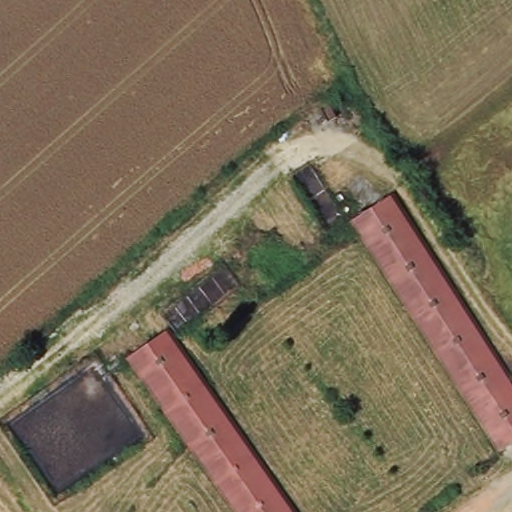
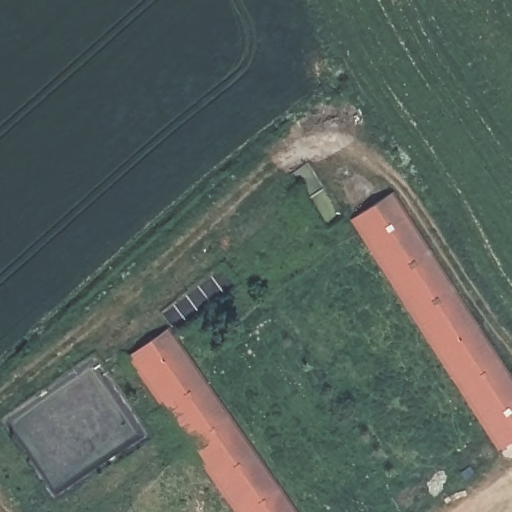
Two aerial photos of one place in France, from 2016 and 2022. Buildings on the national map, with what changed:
unchanged [(470,319),(512,397),(512,440),(485,455),(428,350),(385,268),(356,215),(401,191),(470,319)]
unchanged [(240,427),(289,512),(230,512),(174,415),(135,347),(178,322),(240,427)]

